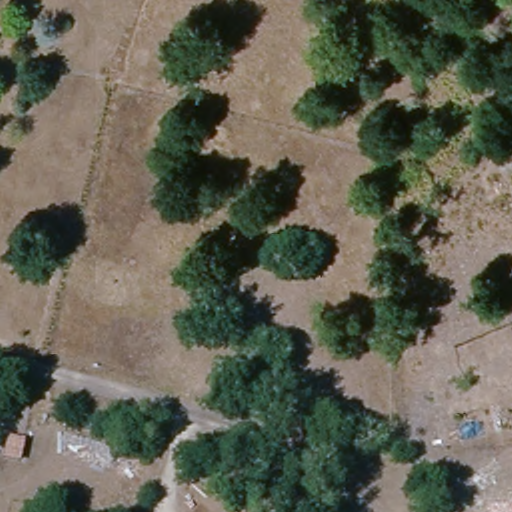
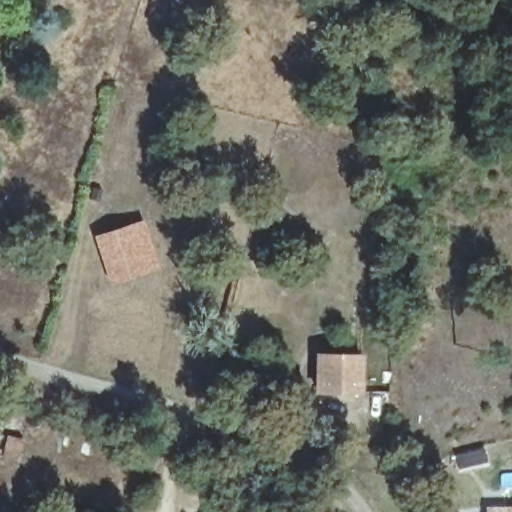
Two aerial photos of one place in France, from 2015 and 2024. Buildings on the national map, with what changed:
new [(94,235),(142,219),(159,266),(111,284),(94,235)]
new [(365,394),(314,392),(315,351),(365,352),(365,394)]
unchanged [(486,508),(512,508),(512,512),(486,512),(486,508)]

